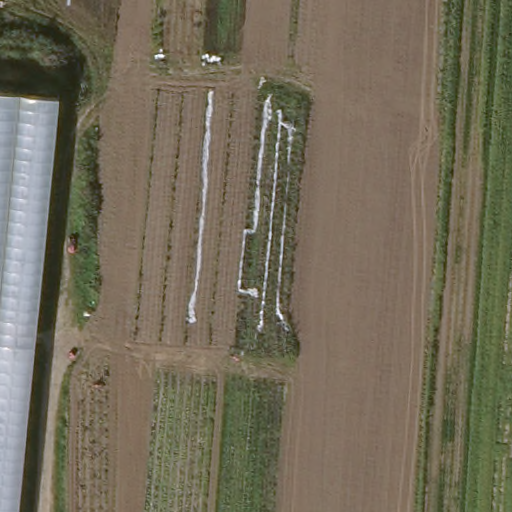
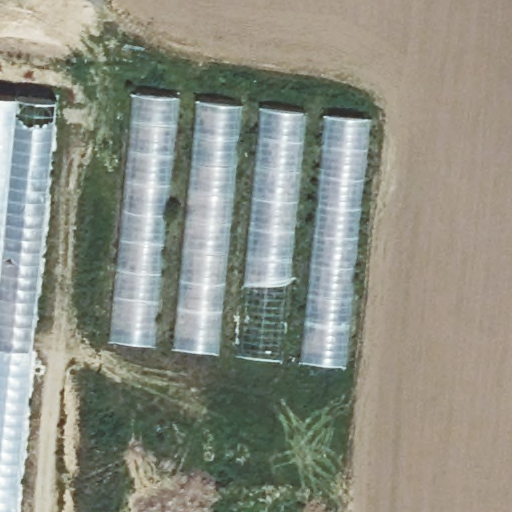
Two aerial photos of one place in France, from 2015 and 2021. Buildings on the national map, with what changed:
new [(173,96),(151,344),(110,340),(133,91),(173,96)]
unchanged [(17,512),(0,512),(0,92),(58,97),(17,512)]
new [(235,103),(212,348),(175,346),(198,99),(235,103)]
new [(299,111),(278,358),(240,353),(263,108),(299,111)]
new [(365,118),(341,363),(304,360),(328,114),(365,118)]

